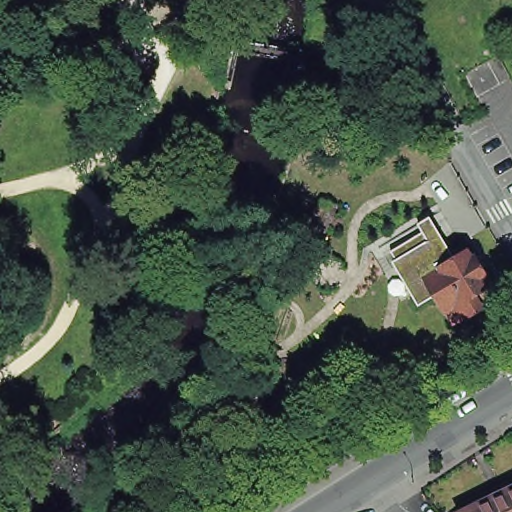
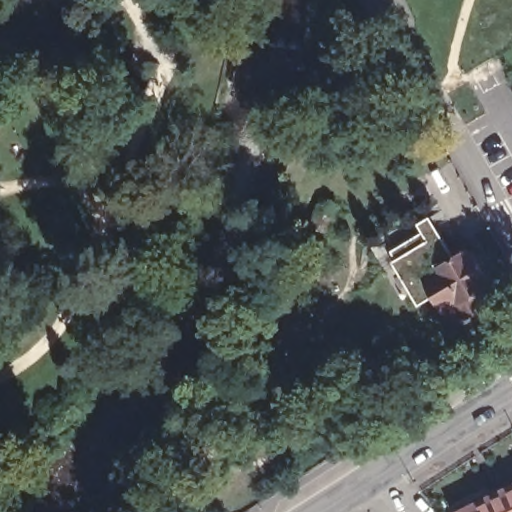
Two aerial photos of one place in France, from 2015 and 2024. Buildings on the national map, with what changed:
unchanged [(310,225),(322,199),(337,204),(325,231),(310,225)]
unchanged [(458,249),(458,244),(460,244),(470,245),(471,253),(482,270),(488,273),(485,291),(478,295),(482,300),(466,309),(465,309),(455,313),(449,303),(446,304),(436,289),(430,294),(411,264),(414,262),(402,240),(423,226),(437,248),(443,259),(458,249)]
unchanged [(512,489),(512,512),(466,512),(512,489)]

